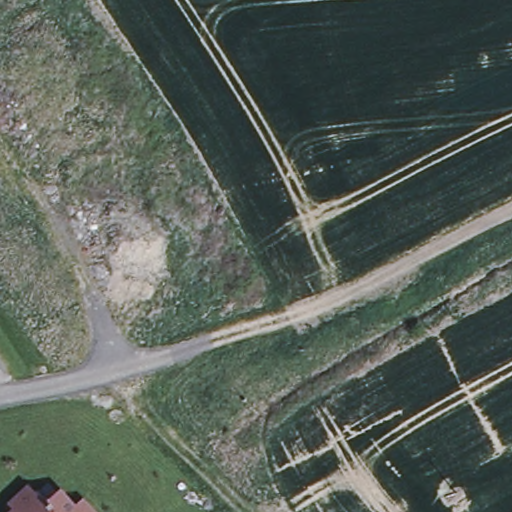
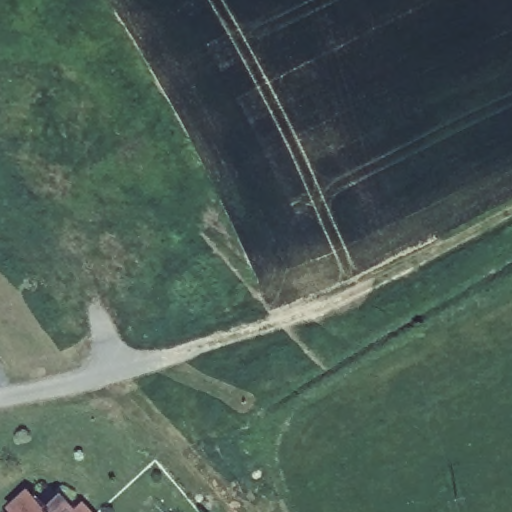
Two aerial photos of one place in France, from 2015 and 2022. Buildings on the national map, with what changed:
unchanged [(26,495),(40,512),(8,512),(8,511),(26,495)]
unchanged [(70,512),(52,512),(61,503),(70,512)]
unchanged [(84,512),(77,512),(81,508),(84,512)]

